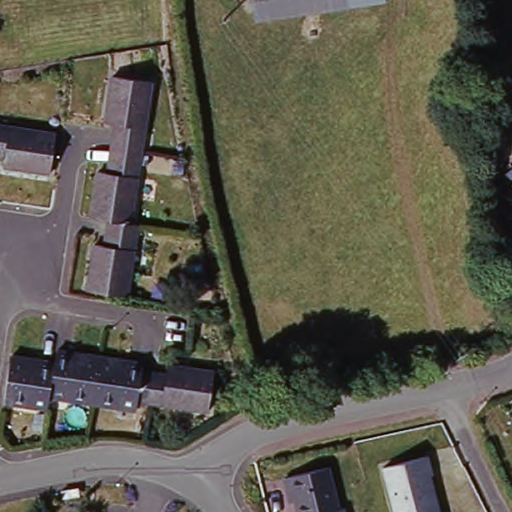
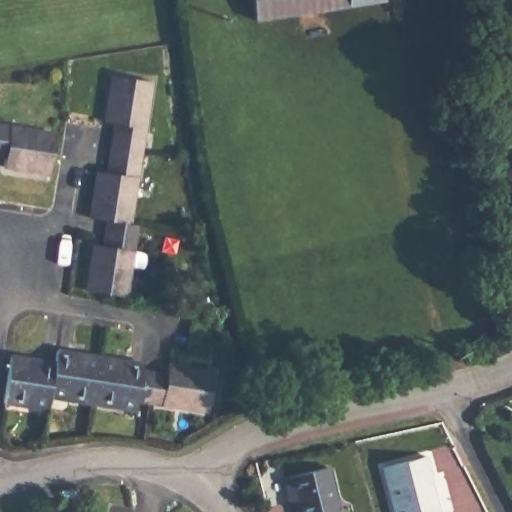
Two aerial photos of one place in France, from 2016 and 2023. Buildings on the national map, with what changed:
unchanged [(254,0),(352,0),(256,15),(254,0)]
unchanged [(88,286),(95,239),(105,241),(107,231),(106,231),(107,216),(92,213),(98,166),(110,169),(111,159),(109,159),(114,129),(116,130),(117,121),(105,118),(112,71),(150,76),(142,132),(129,219),(137,220),(126,292),(88,286)]
unchanged [(49,169),(3,161),(4,151),(0,150),(0,122),(56,130),(49,169)]
unchanged [(508,189),(499,180),(512,168),(512,201),(504,192),(508,189)]
unchanged [(34,402),(9,397),(13,367),(15,351),(59,358),(61,345),(148,359),(146,366),(161,368),(160,370),(170,372),(173,360),(219,367),(213,407),(142,396),(141,399),(140,405),(122,402),(104,400),(73,395),(54,392),(53,399),(52,405),(34,402)]
unchanged [(427,456),(432,474),(430,475),(439,512),(395,512),(384,467),(427,456)]
unchanged [(328,466),(340,508),(344,507),(345,512),(299,512),(296,501),(291,502),(289,494),(284,477),(328,466)]

